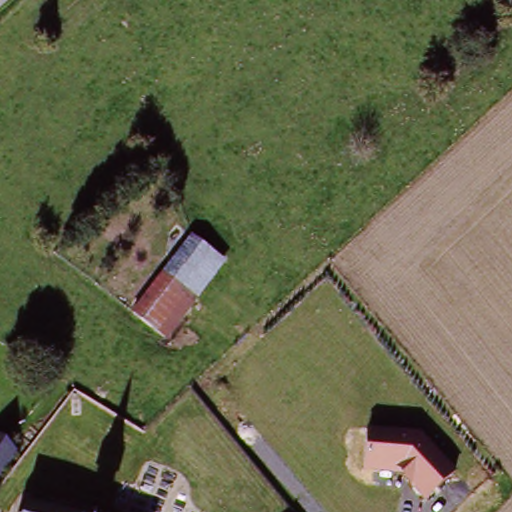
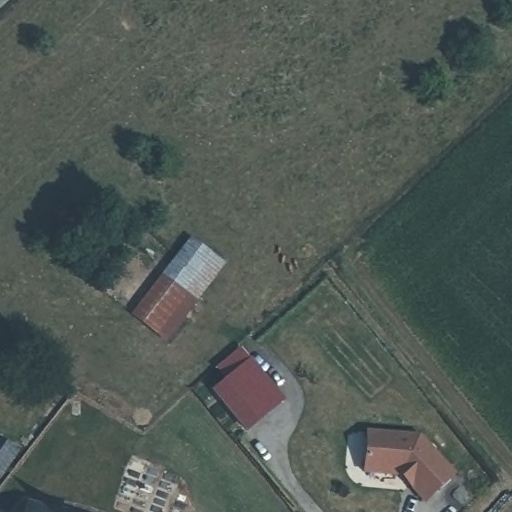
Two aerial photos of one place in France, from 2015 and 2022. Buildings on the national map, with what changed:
unchanged [(129,315),(188,239),(226,266),(166,346),(129,315)]
new [(216,389),(254,359),(287,400),(249,430),(216,389)]
unchanged [(417,438),(453,473),(423,500),(402,476),(362,472),(367,432),(417,438)]
unchanged [(21,456),(0,483),(0,441),(21,456)]
unchanged [(59,512),(32,512),(35,504),(59,512)]

